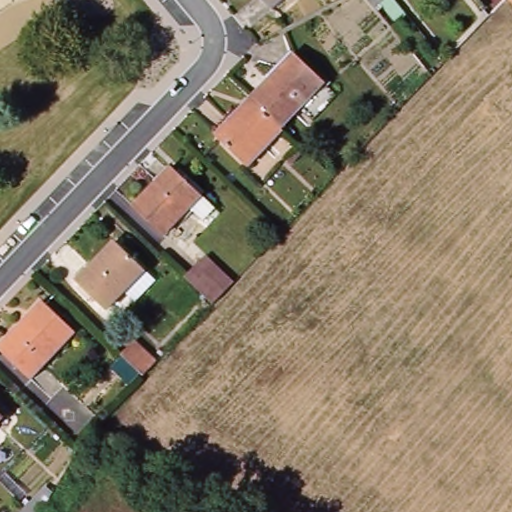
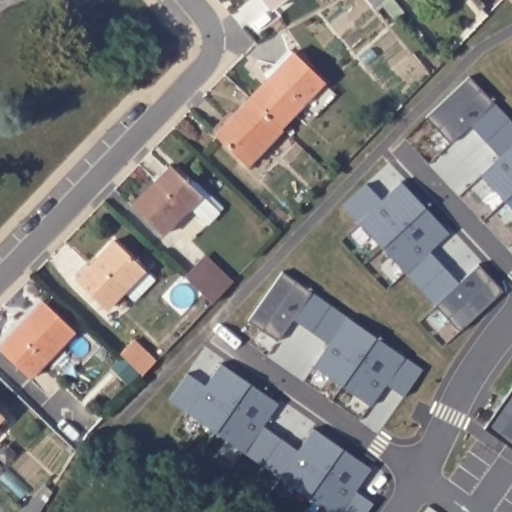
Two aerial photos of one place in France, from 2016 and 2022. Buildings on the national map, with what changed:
unchanged [(269,0),(284,0),(275,7),(269,0)]
unchanged [(368,0),(382,0),(373,7),(368,0)]
unchanged [(512,0),(512,3),(509,0),(512,0)]
unchanged [(250,97),(293,52),(324,81),(281,126),(250,97)]
new [(469,76),(509,119),(485,141),(470,125),(450,144),(426,117),(469,76)]
unchanged [(281,126),(282,128),(248,164),(215,133),(250,97),(281,126)]
new [(485,141),(509,119),(512,122),(512,194),(504,201),(480,175),(500,157),(485,141)]
unchanged [(171,165),(201,193),(162,234),(132,205),(171,165)]
new [(367,184),(382,200),(401,182),(425,207),(382,248),(343,206),(367,184)]
new [(512,210),(504,201),(512,194),(512,210)]
new [(425,207),(449,233),(429,251),(444,267),(420,290),(405,273),(382,248),(425,207)]
unchanged [(76,279),(115,239),(155,277),(134,299),(124,289),(106,308),(76,279)]
unchanged [(200,261),(206,255),(234,282),(228,288),(213,304),(184,277),(200,261)]
new [(444,267),(459,283),(478,264),(503,291),(459,331),(420,290),(444,267)]
new [(283,272),(330,305),(311,332),(293,320),(278,342),(248,321),(283,272)]
unchanged [(42,300),(75,331),(30,378),(0,349),(0,345),(42,300)]
new [(330,305),(376,337),(342,386),(313,366),(329,344),(311,332),(330,305)]
new [(376,337),(423,370),(404,397),(386,384),(370,406),(342,386),(376,337)]
unchanged [(143,375),(120,353),(133,340),(156,362),(143,375)]
new [(188,373),(206,386),(221,364),(250,384),(215,433),(169,400),(188,373)]
new [(250,384),(278,404),(263,426),(281,438),(262,465),(215,433),(250,384)]
new [(512,448),(484,428),(512,389),(512,448)]
unchanged [(3,415),(0,419),(0,412),(3,415)]
new [(281,438),(298,451),(314,429),(342,448),(308,498),(262,465),(281,438)]
new [(342,448),(371,469),(356,491),(374,503),(368,512),(328,512),(308,498),(342,448)]
unchanged [(26,506),(35,497),(44,506),(40,512),(21,512),(26,506)]

